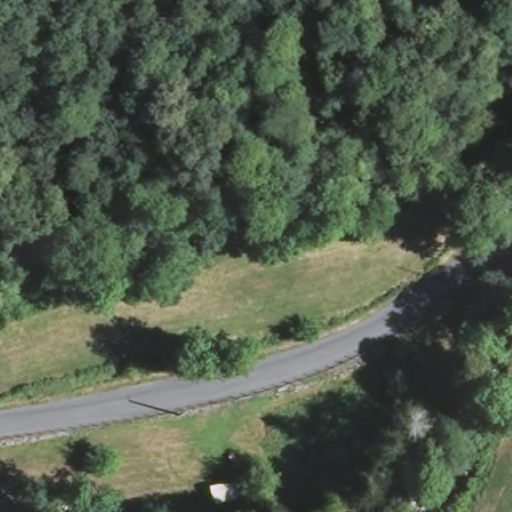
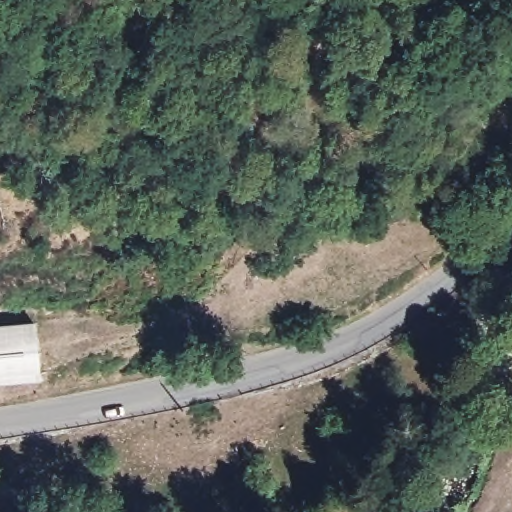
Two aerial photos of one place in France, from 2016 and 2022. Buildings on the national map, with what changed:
new [(38,386),(0,388),(0,334),(36,332),(38,386)]

